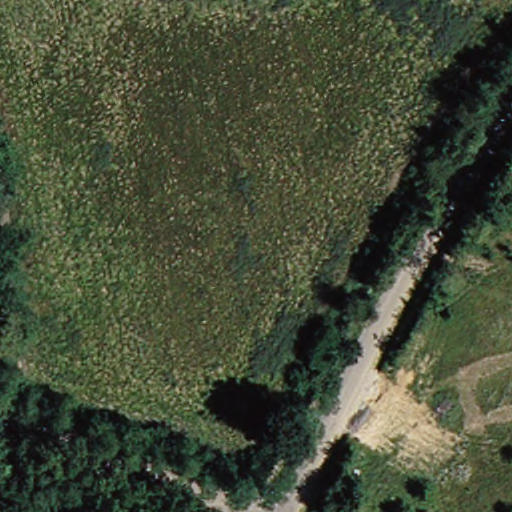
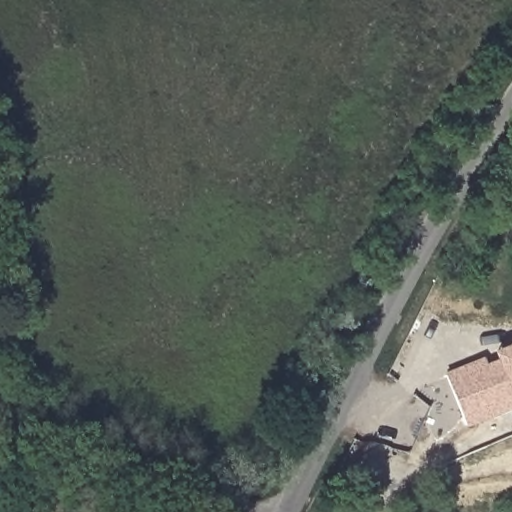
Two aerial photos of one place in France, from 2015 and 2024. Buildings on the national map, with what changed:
new [(444,372),(483,357),(486,364),(497,360),(494,352),(512,345),(512,410),(467,427),(444,372)]

